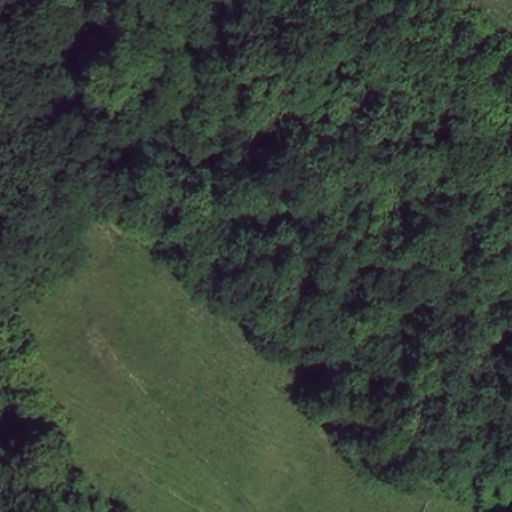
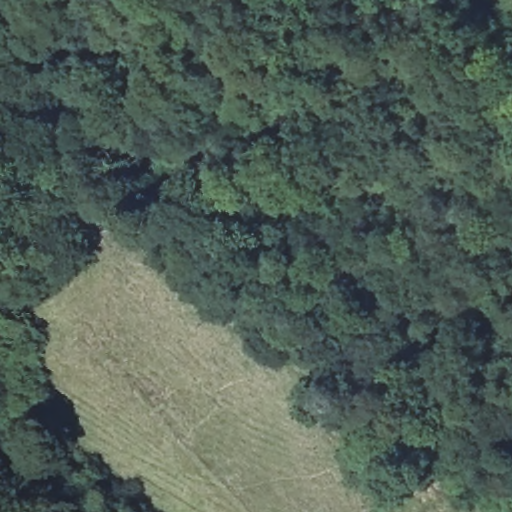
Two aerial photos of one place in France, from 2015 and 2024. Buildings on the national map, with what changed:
[]

